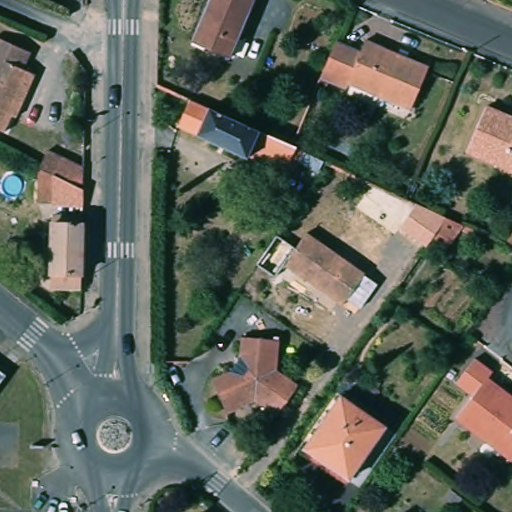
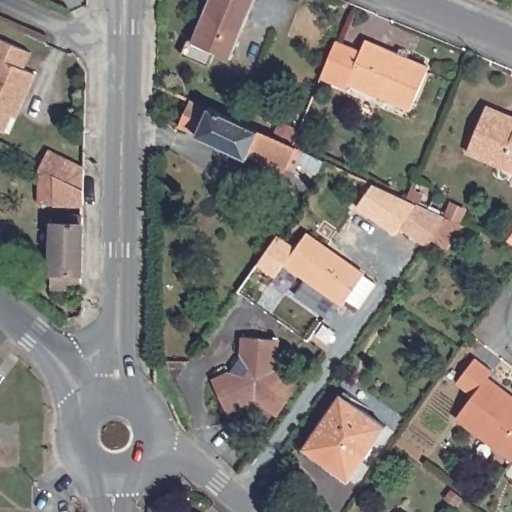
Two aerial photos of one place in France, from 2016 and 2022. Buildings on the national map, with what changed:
unchanged [(229,61),(192,45),(210,0),(256,0),(229,61)]
unchanged [(27,64),(39,69),(20,111),(16,110),(8,127),(0,124),(0,32),(34,47),(27,64)]
unchanged [(368,38),(429,64),(412,106),(351,81),(348,88),(320,76),(336,40),(363,50),(368,38)]
unchanged [(249,157),(197,135),(198,132),(182,125),(193,98),(244,121),(291,142),(298,145),(290,164),(253,147),(249,157)]
unchanged [(504,165),(466,149),(488,102),(512,113),(512,169),(504,165)]
unchanged [(43,167),(51,149),(89,166),(89,190),(89,205),(58,204),(43,203),(43,167)]
unchanged [(433,237),(429,243),(402,229),(389,222),(401,206),(413,212),(419,201),(466,225),(452,249),(433,237)]
unchanged [(51,249),(46,248),(47,240),(52,240),(54,223),(83,225),(80,278),(49,275),(51,249)]
unchanged [(347,300),(344,305),(283,266),(310,230),(381,283),(361,310),(347,300)]
unchanged [(512,237),(512,243),(509,241),(512,237)]
unchanged [(278,341),(279,373),(297,389),(284,408),(277,418),(256,403),(224,410),(211,378),(233,370),(243,358),(243,338),(278,341)]
unchanged [(462,421),(478,400),(461,387),(479,362),(496,375),(491,381),(512,397),(512,460),(462,421)]
unchanged [(388,428),(351,481),(307,450),(343,397),(388,428)]

